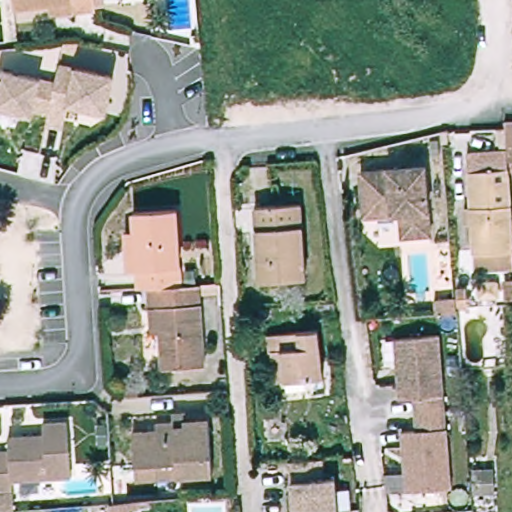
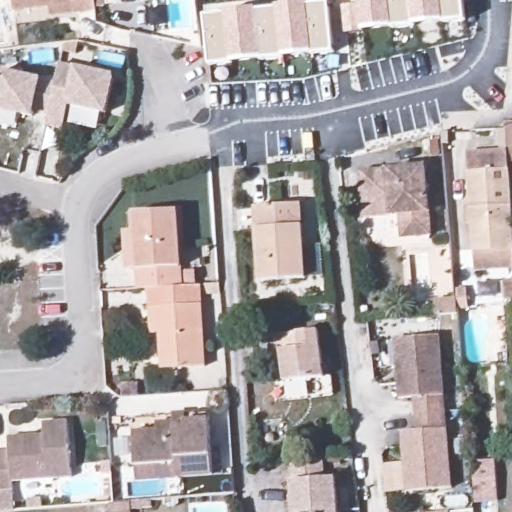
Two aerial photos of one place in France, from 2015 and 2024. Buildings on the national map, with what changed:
unchanged [(12,5),(11,0),(93,0),(94,4),(49,10),(48,1),(12,5)]
new [(362,30),(346,32),(344,6),(359,4),(359,0),(464,0),(467,20),(363,32),(362,30)]
new [(210,66),(205,16),(330,3),(336,53),(210,66)]
unchanged [(65,126),(32,120),(32,115),(0,108),(0,82),(3,72),(57,84),(62,64),(115,76),(108,113),(69,107),(65,126)]
unchanged [(465,221),(459,221),(459,209),(464,208),(461,165),(506,162),(512,254),(512,269),(468,271),(465,221)]
unchanged [(360,203),(358,174),(422,170),(428,238),(398,240),(397,218),(369,219),(362,219),(360,203)]
unchanged [(258,283),(255,208),(299,204),(303,280),(258,283)]
unchanged [(140,271),(131,271),(129,232),(138,232),(136,214),(180,211),(185,286),(152,289),(141,289),(140,271)]
unchanged [(500,299),(499,279),(512,280),(512,299),(500,299)]
unchanged [(185,286),(203,285),(209,367),(165,370),(163,334),(155,334),(152,289),(185,286)]
unchanged [(433,303),(455,302),(455,290),(465,289),(467,309),(456,309),(457,317),(434,318),(433,303)]
unchanged [(321,378),(275,383),(271,352),(267,352),(266,337),(315,330),(321,378)]
unchanged [(449,414),(419,417),(418,401),(403,402),(398,342),(442,338),(449,414)]
unchanged [(135,482),(131,433),(156,432),(155,423),(171,423),(171,417),(206,414),(211,476),(135,482)]
unchanged [(455,491),(410,494),(406,434),(420,433),(419,417),(449,414),(455,491)]
unchanged [(12,443),(48,441),(47,429),(71,428),(75,482),(15,486),(17,512),(0,512),(0,457),(13,457),(12,443)]
unchanged [(289,462),(295,462),(320,460),(321,480),(333,479),(335,512),(292,512),(289,462)]

